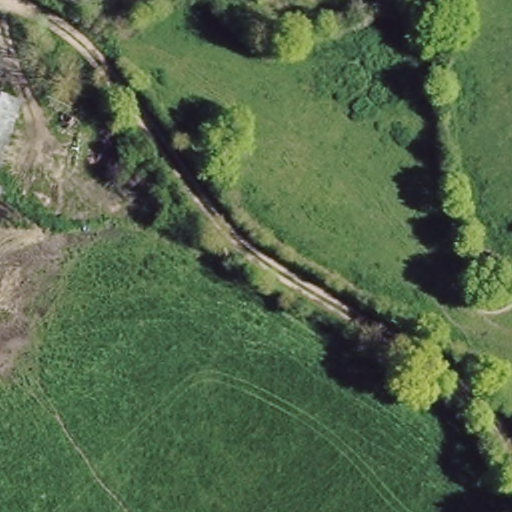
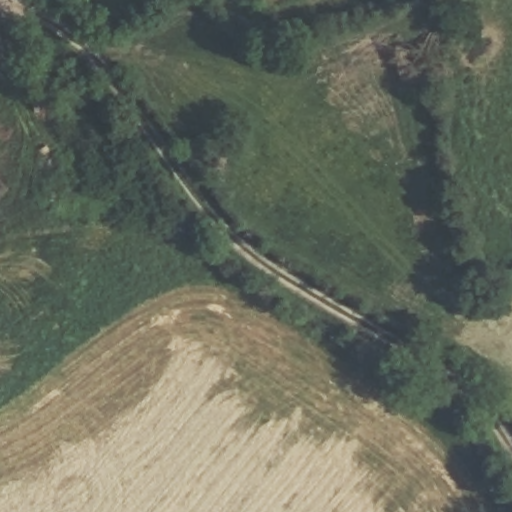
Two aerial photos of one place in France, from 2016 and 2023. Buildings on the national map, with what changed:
unchanged [(14,115),(0,153),(0,109),(14,115)]

